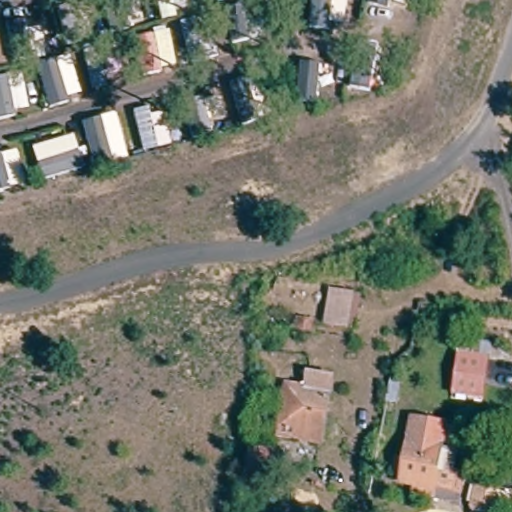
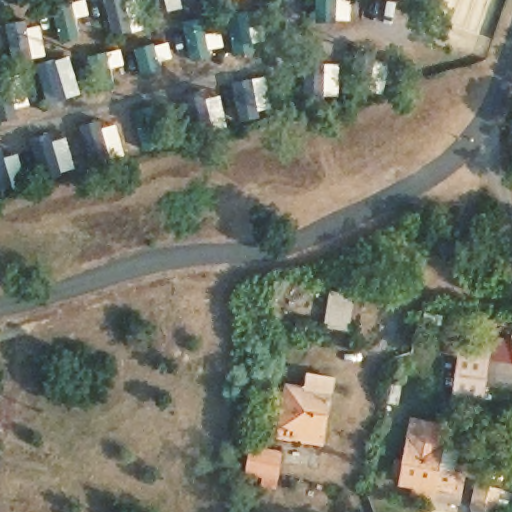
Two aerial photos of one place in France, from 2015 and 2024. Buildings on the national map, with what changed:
unchanged [(233,0),(241,0),(241,5),(254,2),(259,30),(229,36),(223,3),(233,0)]
unchanged [(328,0),(328,2),(343,2),(341,17),(327,18),(327,21),(306,19),(306,0),(328,0)]
unchanged [(389,0),(389,5),(368,2),(368,0),(389,0)]
unchanged [(132,30),(150,27),(156,63),(137,67),(132,30)]
unchanged [(80,42),(96,38),(105,81),(88,85),(80,42)]
unchanged [(369,41),(363,85),(347,83),(352,39),(369,41)]
unchanged [(331,58),(328,101),(300,101),(303,57),(331,58)]
unchanged [(19,63),(26,103),(11,107),(3,68),(19,63)]
unchanged [(245,72),(256,118),(238,121),(229,78),(245,72)]
unchanged [(0,110),(0,86),(4,109),(0,110)]
unchanged [(185,133),(179,93),(201,88),(204,99),(209,99),(214,128),(185,133)]
unchanged [(154,139),(153,144),(138,145),(131,104),(145,101),(146,108),(161,104),(164,121),(179,117),(182,134),(154,139)]
unchanged [(91,160),(84,115),(104,111),(108,135),(120,133),(124,154),(91,160)]
unchanged [(0,156),(14,152),(18,176),(0,181),(0,156)]
unchanged [(358,297),(350,330),(326,324),(334,292),(358,297)]
unchanged [(481,391),(480,398),(454,394),(458,360),(459,354),(460,342),(487,346),(485,357),(484,365),(481,391)]
unchanged [(335,378),(323,446),(282,440),(291,387),(311,390),(313,374),(335,378)]
unchanged [(439,421),(435,447),(449,449),(446,469),(458,472),(456,487),(454,496),(443,494),(409,489),(410,480),(402,479),(395,478),(396,476),(407,416),(439,421)]
unchanged [(276,446),(272,471),(245,466),(250,442),(276,446)]
unchanged [(494,490),(490,512),(479,512),(469,510),(474,487),(494,490)]

